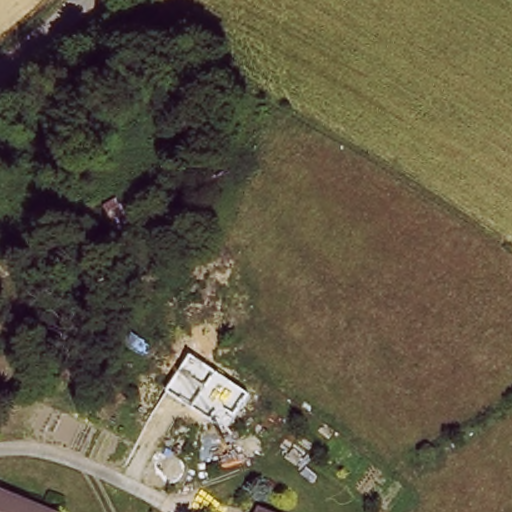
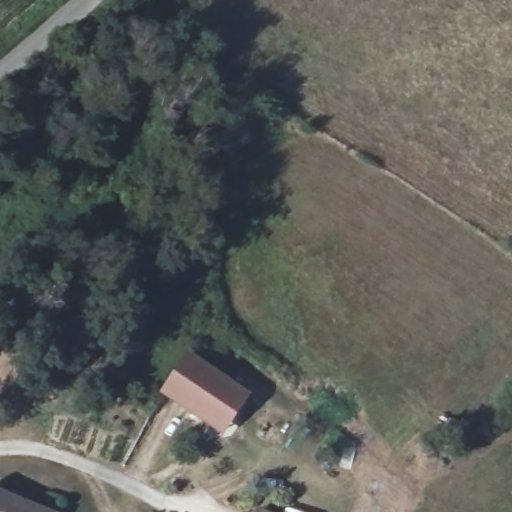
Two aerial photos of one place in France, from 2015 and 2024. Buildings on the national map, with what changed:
new [(190,351),(254,392),(225,436),(183,409),(162,395),(190,351)]
unchanged [(53,512),(0,512),(0,493),(53,512)]
unchanged [(261,506),(273,512),(258,512),(261,506)]

